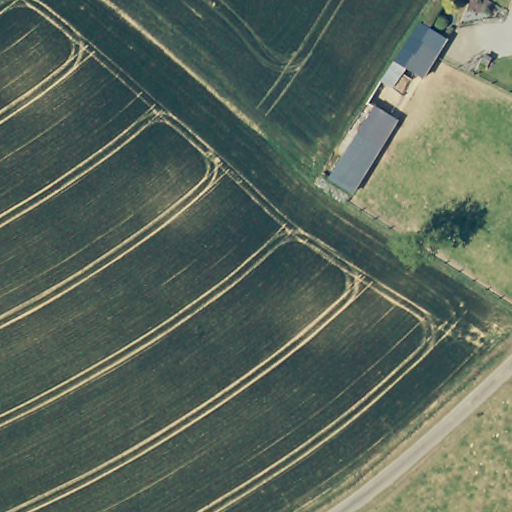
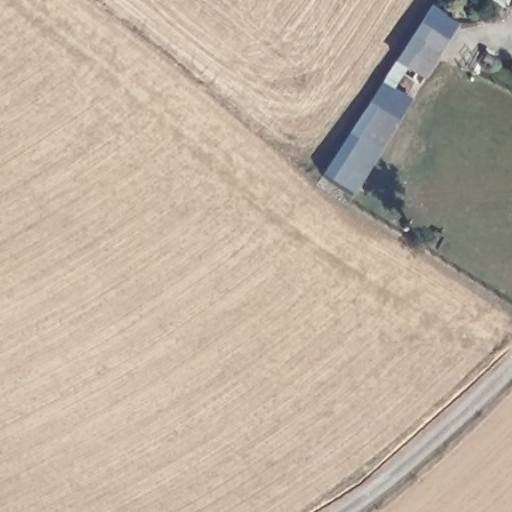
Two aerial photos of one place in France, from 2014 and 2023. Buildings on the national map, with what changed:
unchanged [(425,78),(406,68),(395,89),(413,100),(401,121),(378,106),(359,138),(349,132),(421,21),(448,37),(425,78)]
unchanged [(401,121),(357,193),(335,178),(378,106),(401,121)]

